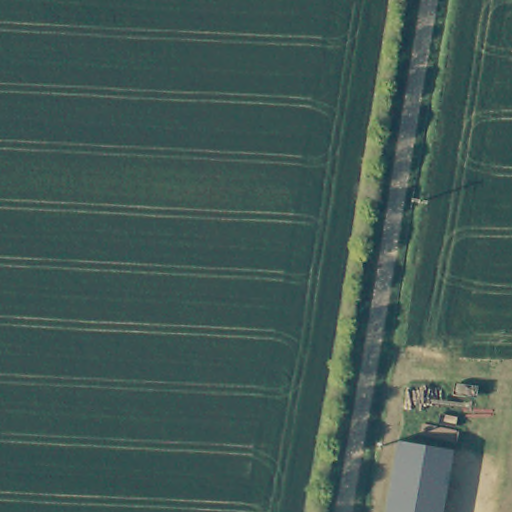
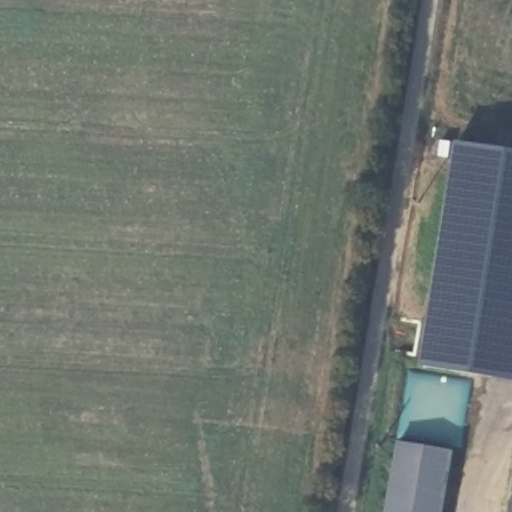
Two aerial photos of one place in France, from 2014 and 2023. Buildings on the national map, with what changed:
new [(421,366),(456,143),(512,151),(512,379),(421,366)]
unchanged [(445,512),(394,512),(402,449),(452,455),(445,512)]

